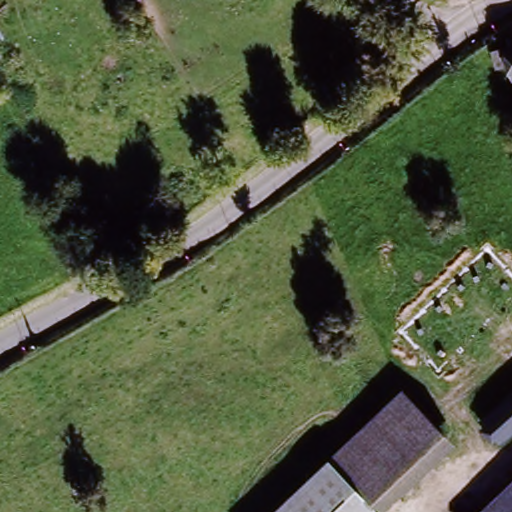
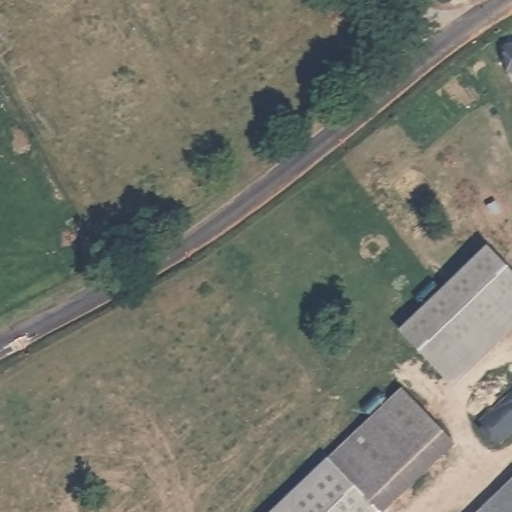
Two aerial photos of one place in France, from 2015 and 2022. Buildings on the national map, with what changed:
unchanged [(496,77),(492,60),(496,60),(512,56),(512,73),(496,77)]
new [(512,273),(512,332),(453,389),(398,331),(425,307),(417,299),(433,282),(442,291),(488,248),(512,273)]
unchanged [(328,460),(402,389),(455,445),(387,512),(273,512),(328,460)]
unchanged [(500,452),(483,435),(512,408),(512,441),(500,452)]
unchanged [(512,479),(512,512),(478,512),(512,479)]

